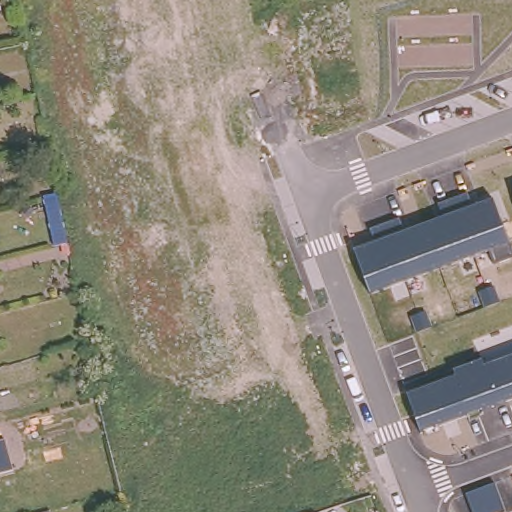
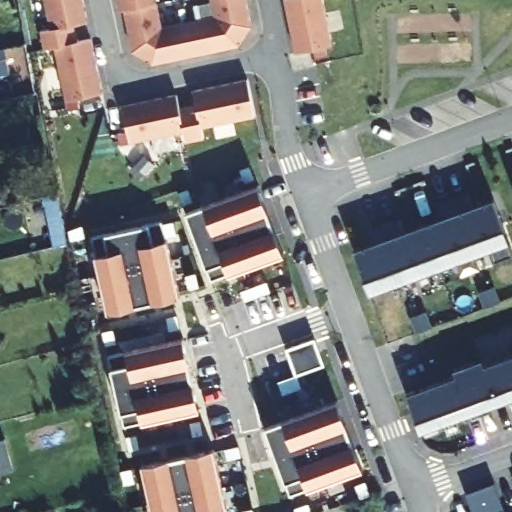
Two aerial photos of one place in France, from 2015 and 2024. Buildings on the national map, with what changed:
new [(73,25),(77,41),(77,42),(55,47),(45,49),(40,31),(51,29),(45,0),(82,0),(87,22),(73,25)]
new [(211,0),(245,0),(251,26),(238,45),(155,66),(132,50),(120,0),(156,0),(162,27),(215,17),(211,0)]
new [(325,46),(327,56),(315,58),(313,49),(296,52),(285,0),(322,0),(332,45),(325,46)]
new [(77,42),(77,41),(90,38),(102,92),(77,98),(80,107),(68,110),(55,47),(77,42)]
new [(248,80),(252,104),(255,121),(201,131),(193,92),(248,80)]
new [(127,131),(122,106),(177,95),(185,131),(120,144),(118,132),(127,131)]
new [(282,254),(210,278),(187,212),(257,187),(282,254)]
unchanged [(509,189),(512,188),(512,197),(509,189)]
unchanged [(485,193),(504,239),(366,290),(349,244),(485,193)]
new [(178,295),(107,311),(92,236),(163,225),(178,295)]
new [(182,341),(197,411),(122,427),(108,357),(182,341)]
unchanged [(422,430),(407,391),(512,352),(512,397),(422,430)]
new [(359,469),(290,495),(265,428),(336,403),(359,469)]
unchanged [(0,473),(0,441),(5,440),(13,470),(0,473)]
new [(212,452),(225,512),(155,512),(145,467),(212,452)]
unchanged [(495,483),(505,512),(473,512),(467,494),(495,483)]
new [(50,511),(50,512),(45,512),(50,511)]

